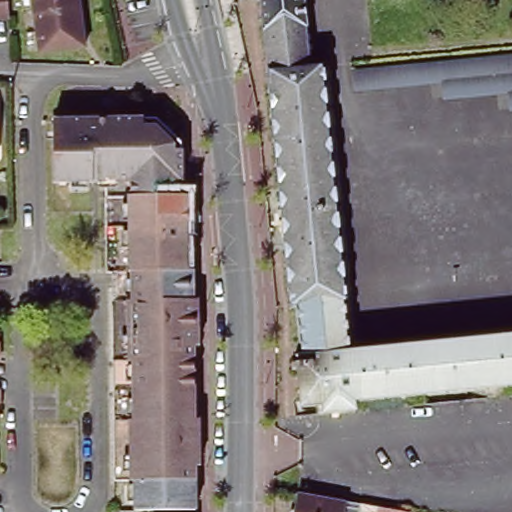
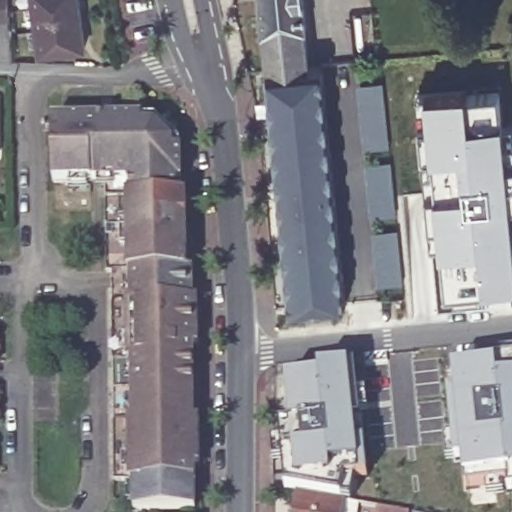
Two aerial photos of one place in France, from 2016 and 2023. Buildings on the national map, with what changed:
unchanged [(10,17),(0,18),(0,0),(8,0),(10,17)]
unchanged [(82,47),(35,51),(32,0),(78,0),(82,47)]
unchanged [(310,28),(307,29),(312,68),(324,68),(325,80),(327,103),(347,304),(345,304),(297,308),(292,309),(261,0),(307,0),(310,28)]
new [(358,85),(382,82),(389,146),(364,148),(358,85)]
new [(428,99),(500,92),(507,165),(512,165),(512,288),(445,294),(440,227),(430,228),(427,194),(437,193),(434,156),(424,157),(420,120),(430,119),(428,99)]
unchanged [(194,139),(197,192),(200,192),(201,267),(204,267),(207,471),(129,469),(130,274),(125,274),(119,182),(67,185),(63,123),(167,116),(194,139)]
new [(365,163),(390,161),(396,215),(372,217),(365,163)]
new [(370,232),(397,229),(402,283),(377,285),(370,232)]
demolished [(512,336),(512,387),(356,402),(357,412),(324,416),(322,406),(300,408),(295,359),(302,358),(297,308),(345,304),(349,352),(512,336)]
new [(464,479),(462,461),(455,462),(449,391),(455,390),(453,372),(496,366),(495,361),(512,360),(512,492),(509,492),(507,485),(467,488),(464,479)]
new [(280,427),(292,425),(286,381),(287,374),(320,370),(349,367),(355,366),(367,477),(360,477),(345,479),(340,494),(285,484),(280,427)]
unchanged [(1,422),(0,423),(0,391),(1,422)]
unchanged [(207,471),(207,505),(128,508),(129,469),(207,471)]
unchanged [(354,512),(294,512),(298,489),(356,499),(354,512)]
unchanged [(393,511),(398,512),(367,512),(367,506),(393,511)]

